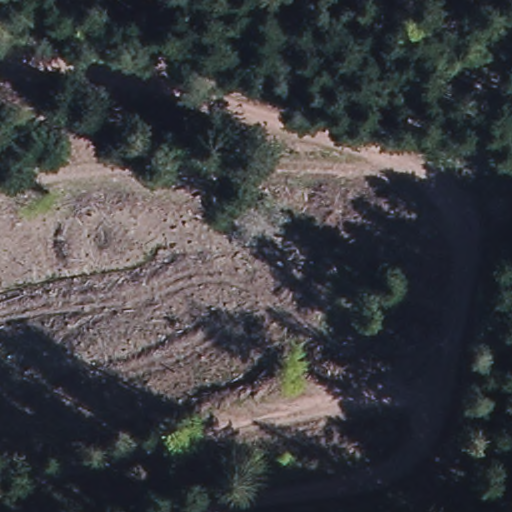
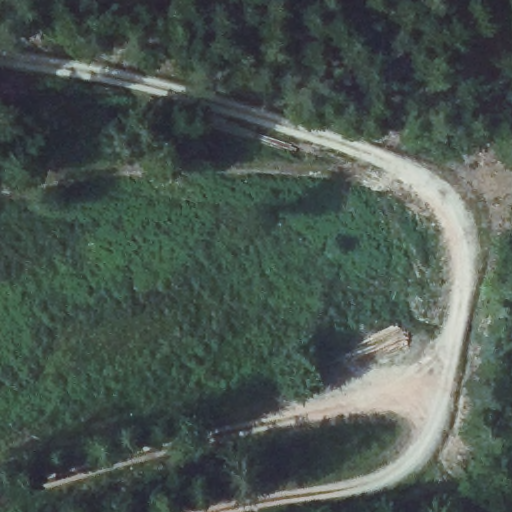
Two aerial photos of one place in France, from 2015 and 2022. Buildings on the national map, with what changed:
unchanged [(332,403),(293,415),(285,388),(323,376),(332,403)]

